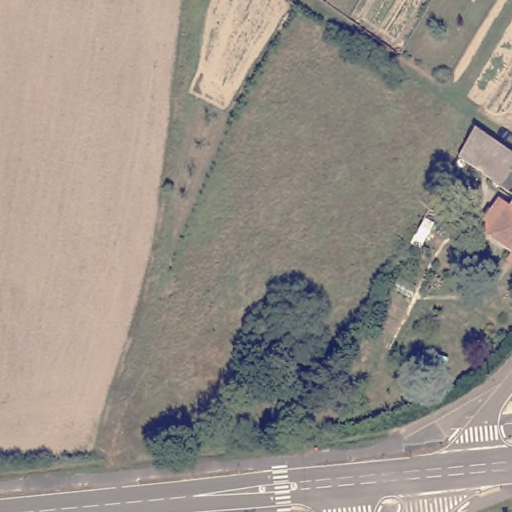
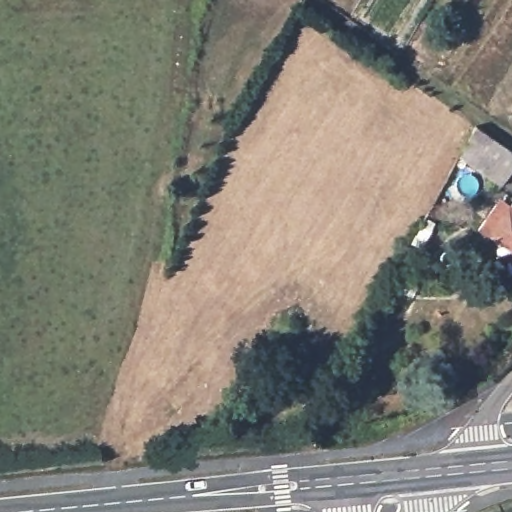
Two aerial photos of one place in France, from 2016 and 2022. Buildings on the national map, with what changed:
unchanged [(512,151),(512,166),(501,183),(459,152),(475,125),(512,151)]
unchanged [(442,208),(427,236),(416,230),(432,201),(442,208)]
unchanged [(491,239),(512,209),(512,253),(491,239)]

